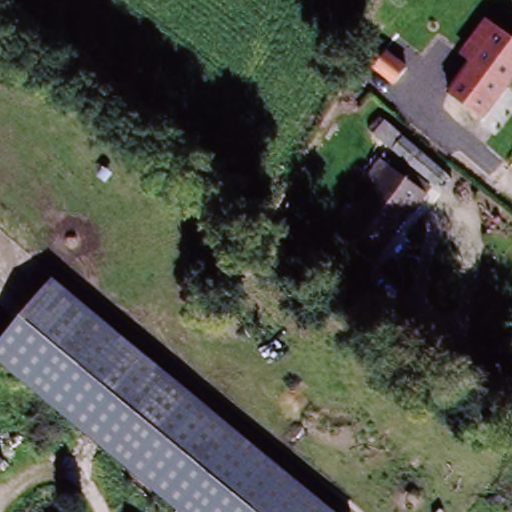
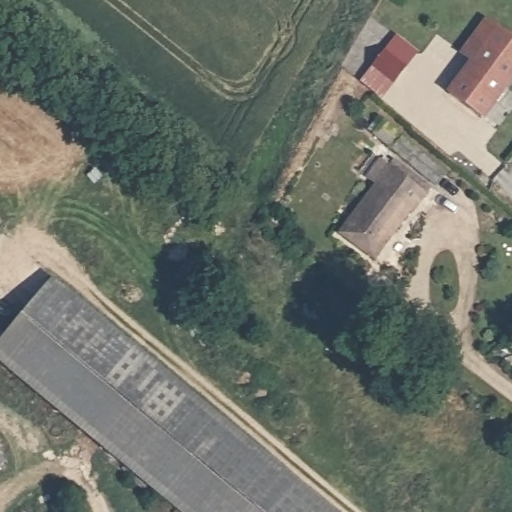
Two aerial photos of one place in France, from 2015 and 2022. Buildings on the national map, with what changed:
unchanged [(512,82),(483,122),(446,96),(470,64),(460,55),(485,22),(512,41),(512,82)]
unchanged [(382,115),(441,164),(429,177),(367,131),(382,115)]
unchanged [(341,235),(366,196),(360,191),(366,180),(381,160),(390,167),(395,160),(433,186),(415,216),(412,214),(379,260),(341,235)]
unchanged [(135,475),(0,365),(0,364),(60,289),(183,388),(338,512),(181,512),(135,476),(135,475)]
unchanged [(3,471),(0,476),(0,468),(3,471)]

